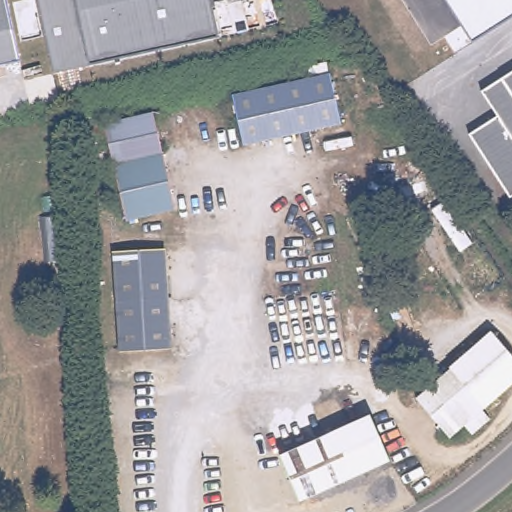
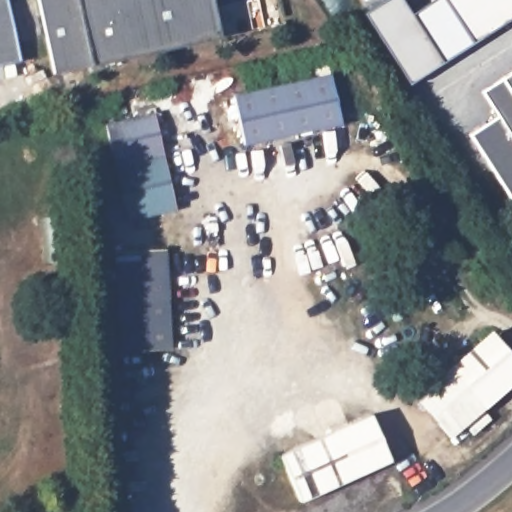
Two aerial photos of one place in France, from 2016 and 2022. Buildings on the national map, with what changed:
unchanged [(21,62),(0,66),(0,0),(9,0),(21,62)]
unchanged [(219,36),(93,64),(55,72),(39,0),(211,0),(219,36)]
new [(440,62),(408,82),(363,12),(383,0),(403,0),(411,13),(432,0),(446,0),(472,41),(440,62)]
unchanged [(512,15),(472,41),(446,0),(512,0),(512,15)]
unchanged [(330,73),(341,122),(244,144),(233,95),(330,73)]
unchanged [(470,135),(498,117),(482,92),(512,73),(512,198),(510,199),(473,142),(470,135)]
unchanged [(160,112),(181,208),(132,220),(110,124),(160,112)]
unchanged [(164,247),(170,348),(120,351),(114,251),(164,247)]
unchanged [(491,338),(512,363),(512,386),(477,417),(485,428),(468,442),(460,431),(448,442),(418,407),(420,398),(491,338)]
unchanged [(371,416),(390,460),(301,500),(282,454),(371,416)]

